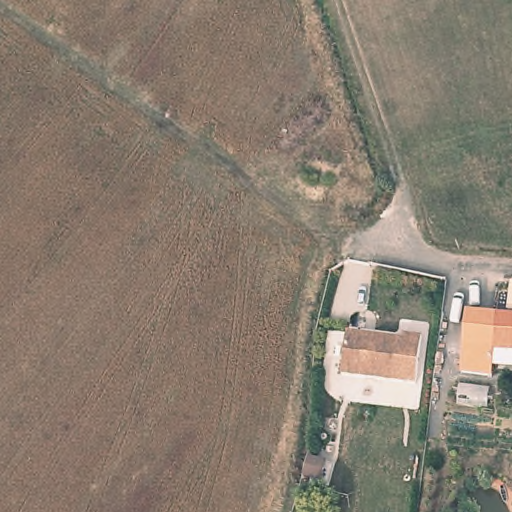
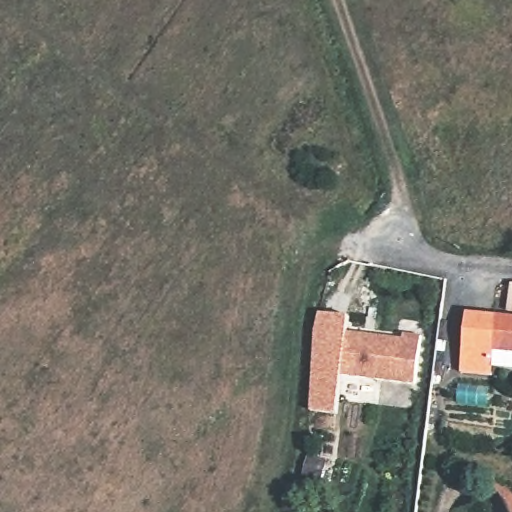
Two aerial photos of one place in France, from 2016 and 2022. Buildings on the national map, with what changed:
unchanged [(512,286),(512,310),(510,310),(512,286)]
new [(319,312),(349,315),(347,332),(341,374),(337,416),(310,411),(314,330),(319,312)]
unchanged [(491,368),(491,372),(462,368),(460,368),(462,353),(466,312),(512,317),(512,351),(493,350),(491,368)]
unchanged [(347,332),(403,340),(404,334),(422,337),(415,385),(359,377),(341,374),(347,332)]

